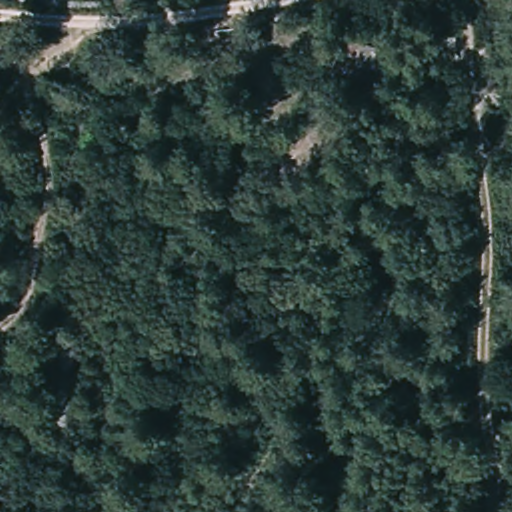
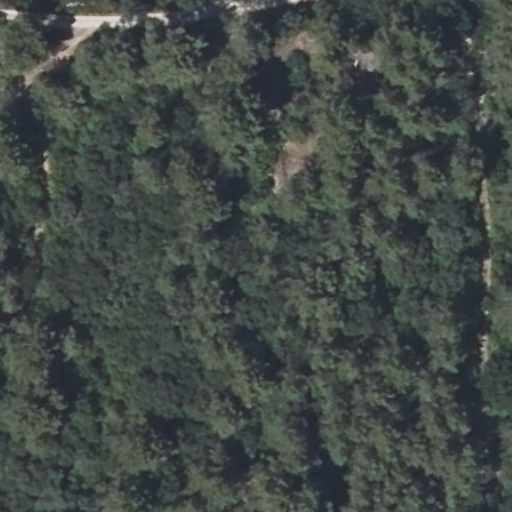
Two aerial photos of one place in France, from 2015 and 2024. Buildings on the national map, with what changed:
unchanged [(385,50),(381,71),(360,66),(360,59),(348,56),(353,42),(385,50)]

